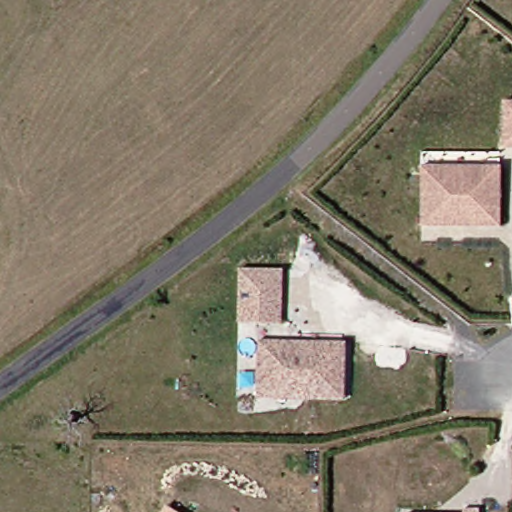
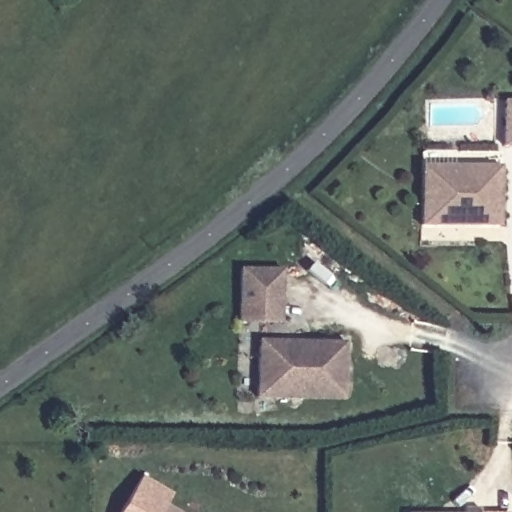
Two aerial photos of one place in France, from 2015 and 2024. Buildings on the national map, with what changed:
unchanged [(512,100),(512,145),(506,145),(507,100),(512,100)]
unchanged [(421,219),(423,160),(443,161),(481,162),(501,163),(500,222),(480,221),(441,220),(421,219)]
unchanged [(280,269),(280,320),(239,320),(239,268),(280,269)]
unchanged [(289,397),(258,397),(258,347),(258,340),(295,340),(345,340),(345,390),(345,397),(289,397)]
new [(140,476),(170,494),(165,505),(161,512),(120,512),(140,476)]
unchanged [(165,505),(178,512),(161,512),(165,505)]
unchanged [(465,507),(480,507),(480,512),(464,512),(465,507)]

